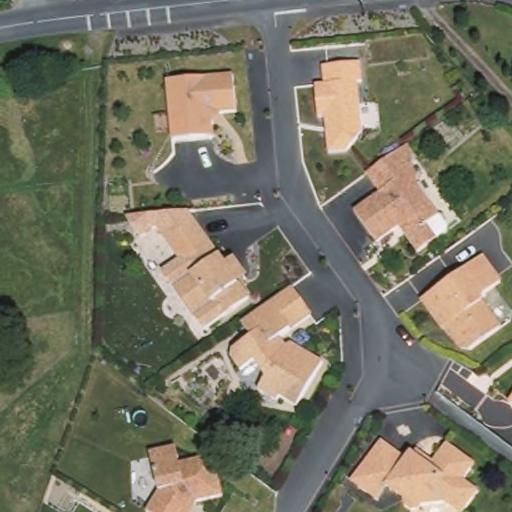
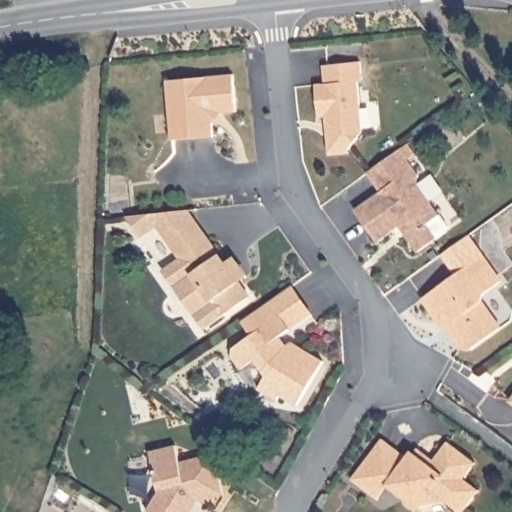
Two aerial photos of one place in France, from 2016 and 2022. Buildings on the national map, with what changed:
unchanged [(371,63),(372,83),(369,83),(373,133),(357,152),(318,153),(317,119),(307,120),(305,89),(315,87),(313,69),(371,63)]
unchanged [(231,112),(216,114),(207,127),(210,137),(169,142),(162,83),(227,77),(231,112)]
unchanged [(382,160),(403,145),(412,156),(405,162),(417,180),(413,183),(434,214),(422,225),(432,238),(413,252),(394,225),(370,242),(351,215),(377,196),(362,174),(382,160)]
unchanged [(169,289),(182,280),(187,277),(159,234),(192,232),(218,266),(231,265),(235,270),(242,281),(232,289),(241,303),(218,318),(208,304),(202,308),(190,318),(169,289)]
unchanged [(498,282),(483,293),(481,301),(500,326),(468,350),(458,348),(446,329),(442,331),(420,300),(480,257),(498,282)]
unchanged [(267,300),(287,287),(307,315),(288,330),(281,337),(289,349),(293,345),(325,364),(300,406),(283,398),(278,405),(260,393),(267,382),(252,370),(236,382),(225,365),(227,353),(248,339),(235,323),(248,314),(267,300)]
unchanged [(512,389),(512,408),(503,401),(512,389)]
unchanged [(416,450),(432,463),(447,445),(473,466),(463,481),(477,493),(463,512),(455,512),(440,501),(420,506),(412,512),(411,512),(400,503),(402,497),(388,486),(377,501),(352,481),(383,442),(407,460),(416,450)]
unchanged [(172,461),(194,456),(207,464),(215,493),(189,499),(181,512),(141,512),(139,510),(151,490),(142,451),(167,444),(172,461)]

